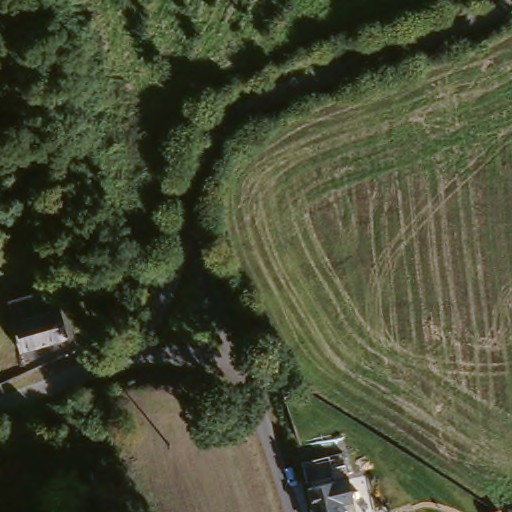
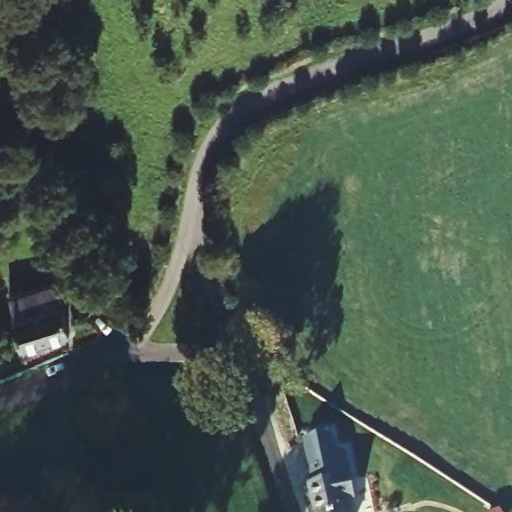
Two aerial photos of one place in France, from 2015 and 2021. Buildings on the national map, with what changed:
unchanged [(71,324),(24,340),(15,318),(8,298),(51,282),(58,303),(64,301),(71,324)]
unchanged [(305,463),(344,454),(350,482),(312,493),(305,463)]
unchanged [(353,497),(344,502),(346,512),(317,512),(312,493),(350,482),(353,497)]

